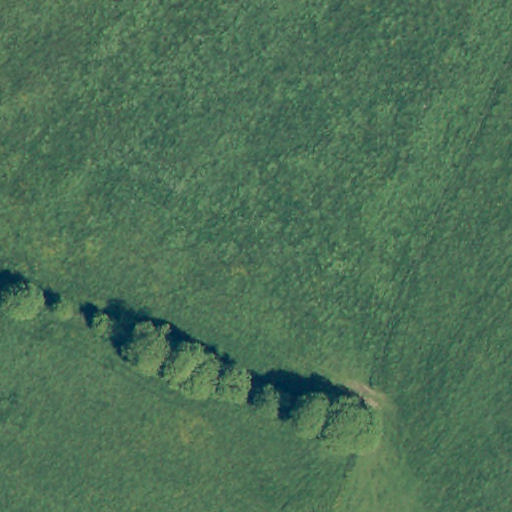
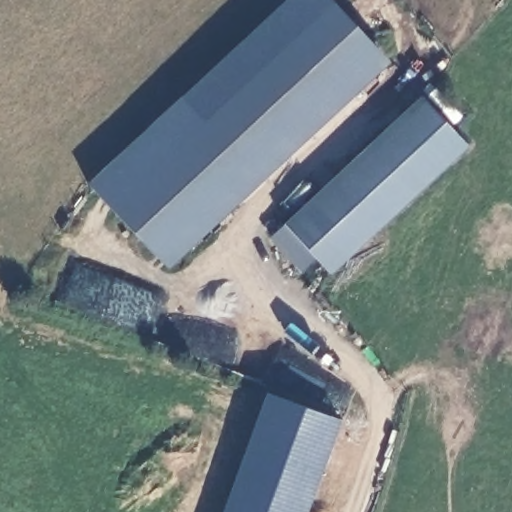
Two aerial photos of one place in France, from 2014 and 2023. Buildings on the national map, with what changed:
new [(182,96),(204,120),(334,4),(390,63),(170,268),(89,182),(182,96)]
new [(284,223),(421,96),(469,145),(332,275),(316,259),(303,272),(271,237),(284,223)]

